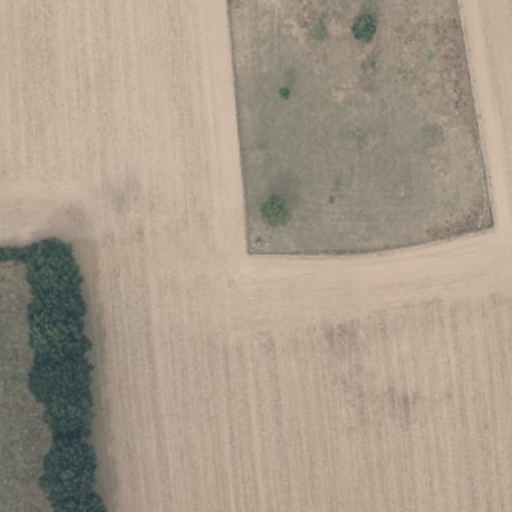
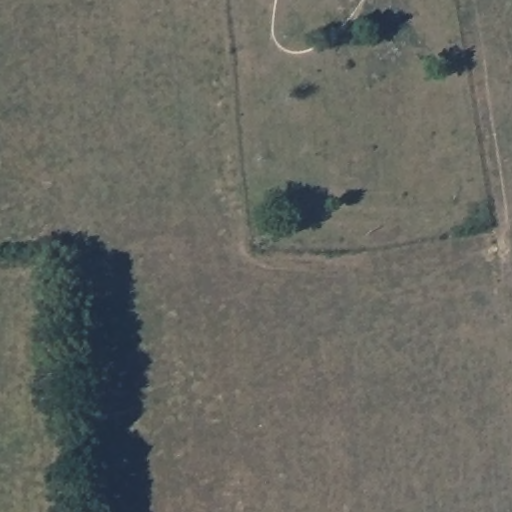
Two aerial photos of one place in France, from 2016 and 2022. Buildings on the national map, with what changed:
[]

